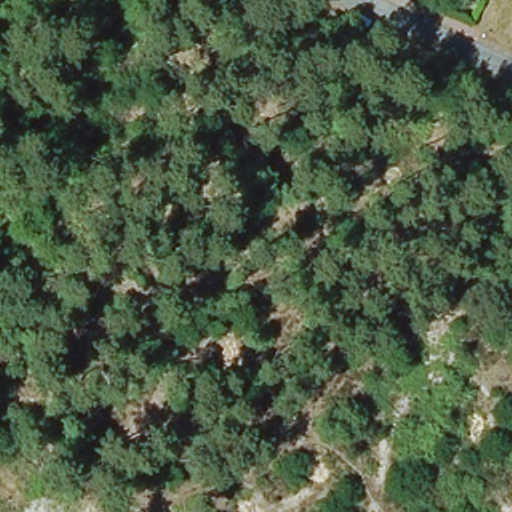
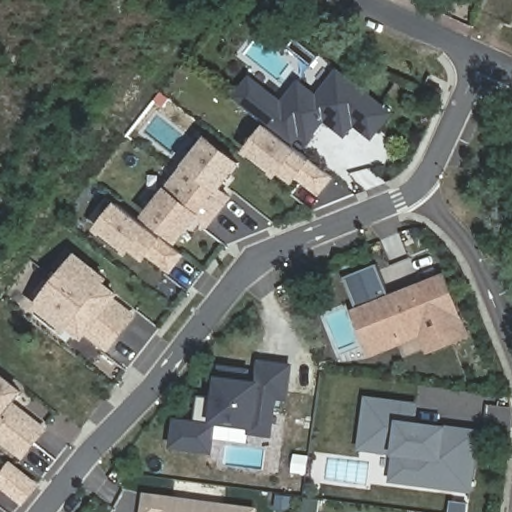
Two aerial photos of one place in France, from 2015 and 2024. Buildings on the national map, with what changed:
new [(249,77),(282,104),(297,85),(313,99),(336,70),(389,112),(371,134),(353,121),(344,133),(336,126),(320,147),(307,137),(298,149),(266,124),(233,98),(249,77)]
new [(279,168),(275,173),(246,149),(266,124),(298,149),(330,174),(317,190),(296,174),(292,178),(279,168)]
new [(206,137),(237,161),(217,187),(228,195),(218,209),(176,175),(206,137)]
new [(207,222),(196,213),(176,239),(145,214),(176,175),(218,209),(207,222)]
new [(129,245),(125,249),(96,227),(117,201),(181,252),(168,268),(147,250),(143,255),(129,245)]
new [(104,277),(91,293),(100,282),(114,293),(110,297),(102,290),(132,314),(119,330),(55,279),(75,254),(104,277)]
new [(364,327),(357,309),(363,307),(354,287),(349,289),(344,276),(376,263),(389,297),(398,294),(400,299),(417,293),(414,287),(442,276),(464,333),(429,347),(422,329),(382,344),(373,348),(364,327)]
new [(68,324),(64,329),(35,305),(55,279),(119,330),(106,346),(85,329),(81,334),(68,324)]
new [(250,430),(251,424),(213,419),(220,367),(247,370),(245,381),(257,383),(259,362),(290,366),(285,396),(275,394),(269,433),(250,430)]
new [(15,416),(19,411),(41,429),(32,441),(0,416),(0,375),(19,390),(5,408),(15,416)]
new [(359,447),(366,397),(416,404),(413,422),(445,426),(477,430),(474,453),(469,489),(406,480),(391,478),(395,451),(359,447)]
new [(0,426),(0,416),(4,420),(0,426)]
new [(0,437),(0,436),(9,424),(32,441),(21,454),(0,437)]
new [(35,484),(22,500),(0,482),(0,467),(3,470),(8,464),(35,484)]
new [(144,494),(254,509),(254,512),(142,512),(144,494)]

